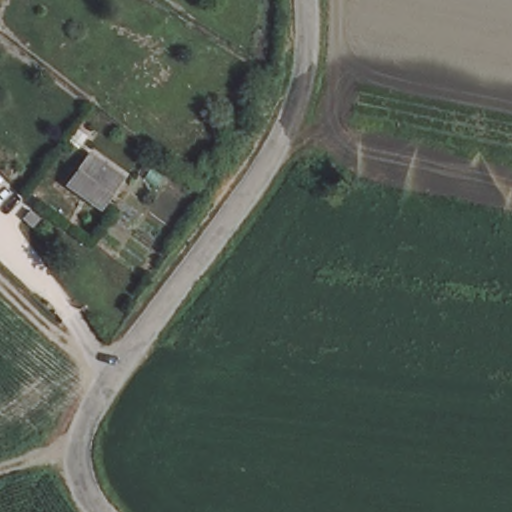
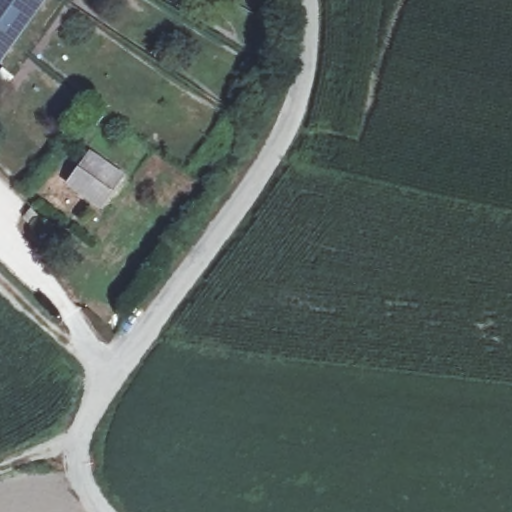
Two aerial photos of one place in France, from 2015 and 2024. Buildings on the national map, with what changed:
new [(1,0),(0,2),(0,0),(1,0)]
new [(7,50),(0,45),(0,2),(1,0),(44,0),(8,50),(7,50)]
new [(7,50),(0,60),(0,45),(7,50)]
unchanged [(125,176),(113,192),(101,208),(68,184),(92,151),(125,176)]

